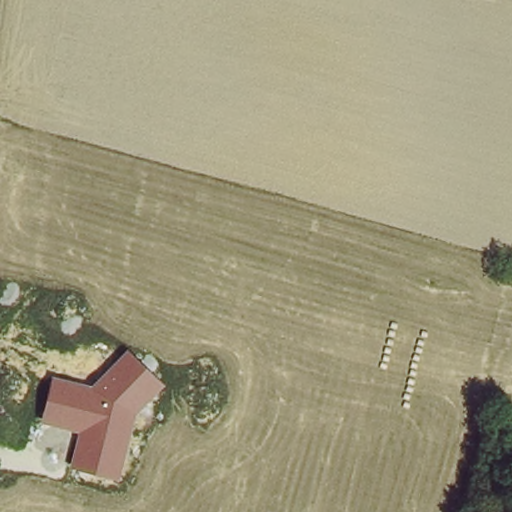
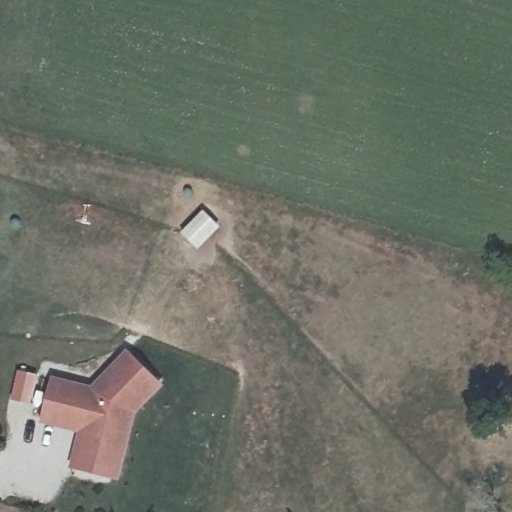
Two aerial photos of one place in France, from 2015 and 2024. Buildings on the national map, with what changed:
unchanged [(136,413),(119,480),(70,467),(79,433),(41,423),(53,377),(92,386),(127,349),(165,386),(136,413)]

